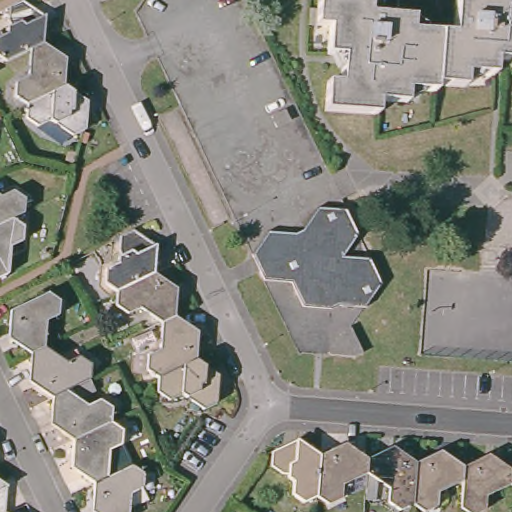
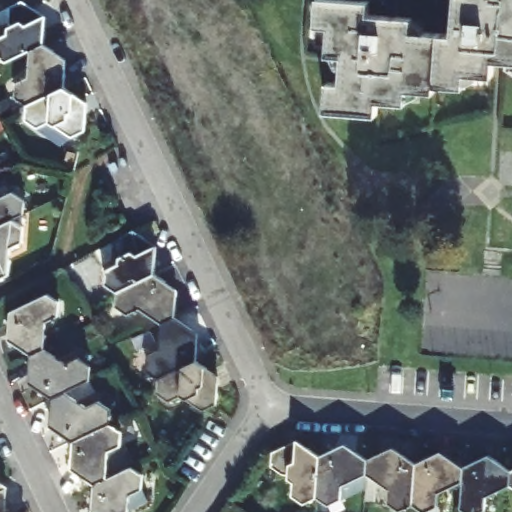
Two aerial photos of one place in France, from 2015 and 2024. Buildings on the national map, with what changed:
unchanged [(18,0),(25,0),(45,14),(43,42),(28,49),(4,61),(0,57),(0,34),(5,33),(6,6),(18,0)]
unchanged [(489,78),(463,75),(462,90),(432,87),(431,95),(404,93),(402,107),(373,104),(372,120),(320,116),(322,88),(337,89),(339,62),(321,61),(324,31),(310,29),(313,0),(363,4),(362,17),(390,20),(390,15),(392,0),(430,0),(430,4),(409,2),(407,15),(407,16),(407,34),(446,37),(449,0),(512,0),(512,63),(490,61),(489,78)]
unchanged [(43,42),(65,57),(64,84),(25,102),(15,94),(17,79),(25,75),(28,49),(43,42)]
unchanged [(64,84),(85,98),(85,130),(71,137),(47,120),(37,124),(24,114),(25,102),(64,84)]
unchanged [(8,221),(0,224),(0,193),(4,196),(12,193),(25,201),(24,213),(8,221)]
demolished [(292,284),(265,281),(250,256),(265,233),(297,236),(316,210),(343,211),(354,234),(337,258),(365,260),(375,285),(363,310),(332,310),(302,308),(292,284)]
unchanged [(0,277),(0,224),(8,221),(19,227),(17,243),(6,247),(5,275),(0,277)]
unchanged [(128,234),(152,250),(149,278),(113,295),(102,288),(103,272),(112,267),(114,241),(128,234)]
unchanged [(155,327),(134,311),(124,316),(112,308),(113,295),(149,278),(173,291),(170,319),(155,327)]
unchanged [(58,306),(56,320),(47,324),(45,351),(29,359),(7,344),(8,315),(44,297),(58,306)]
unchanged [(155,381),(143,373),(145,358),(154,353),(155,327),(170,319),(192,336),(191,364),(155,381)]
unchanged [(50,401),(29,385),(29,359),(45,351),(69,365),(79,361),(91,369),(90,382),(50,401)]
unchanged [(191,364),(215,380),(214,406),(197,414),(174,397),(165,403),(153,395),(155,381),(191,364)]
unchanged [(72,445),(50,430),(50,401),(90,382),(96,395),(81,402),(90,410),(99,406),(111,413),(110,427),(72,445)]
unchanged [(120,434),(120,448),(107,453),(107,481),(91,489),(70,473),(72,445),(110,427),(120,434)]
unchanged [(302,503),(290,496),(291,485),(268,470),(270,452),(294,442),(316,456),(313,498),(302,503)]
unchanged [(316,456),(340,444),(365,459),(363,477),(340,488),(339,500),(325,507),(313,498),(316,456)]
unchanged [(410,507),(397,512),(385,504),(387,492),(363,477),(365,459),(391,449),(413,463),(410,507)]
unchanged [(433,506),(423,512),(419,512),(410,507),(413,463),(437,453),(460,467),(459,485),(435,495),(433,506)]
unchanged [(510,473),(509,489),(484,500),(483,511),(480,512),(461,512),(457,510),(459,485),(460,467),(485,457),(510,473)]
unchanged [(512,491),(509,489),(510,473),(510,470),(512,469),(512,491)]
unchanged [(140,493),(130,498),(129,512),(90,512),(91,489),(107,481),(129,470),(142,479),(140,493)]
unchanged [(3,489),(2,512),(0,512),(0,486),(3,489)]

